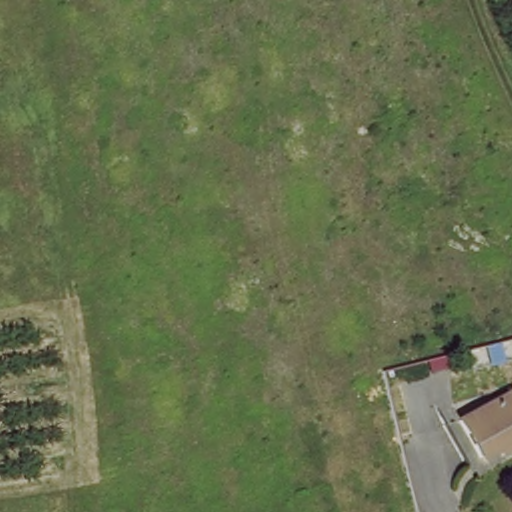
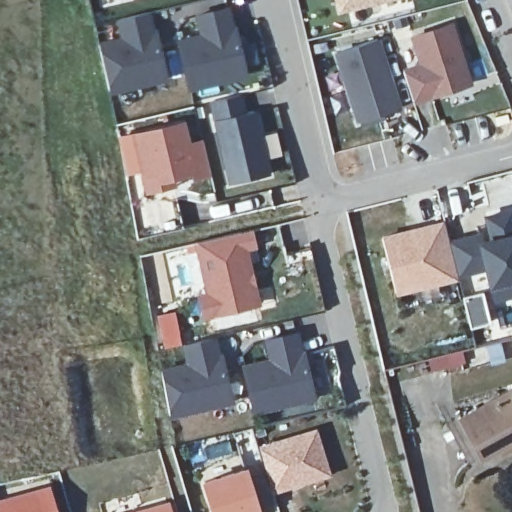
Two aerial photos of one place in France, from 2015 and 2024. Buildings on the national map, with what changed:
new [(344,0),(377,0),(346,8),(344,0)]
new [(201,37),(196,15),(223,9),(239,80),(186,92),(177,43),(201,37)]
new [(120,41),(116,19),(149,11),(164,83),(108,94),(98,46),(120,41)]
new [(418,36),(455,24),(473,82),(417,99),(407,70),(426,64),(418,36)]
new [(403,109),(362,121),(340,53),(381,39),(403,109)]
new [(241,95),(246,115),(253,114),(269,178),(230,188),(213,103),(241,95)]
new [(507,118),(509,124),(497,127),(495,120),(507,118)]
new [(182,123),(187,144),(199,142),(207,180),(146,195),(134,134),(182,123)]
new [(444,226),(448,239),(488,230),(484,210),(512,206),(512,285),(482,291),(477,272),(454,277),(456,288),(394,304),(379,239),(444,226)]
new [(213,294),(201,243),(245,233),(261,304),(218,314),(208,316),(203,297),(213,294)]
new [(159,369),(186,363),(181,339),(218,331),(235,409),(172,424),(159,369)]
new [(269,363),(266,339),(300,332),(313,398),(251,411),(245,369),(269,363)]
unchanged [(490,448),(473,458),(452,419),(501,393),(505,399),(512,397),(512,443),(493,454),(490,448)]
new [(319,432),(331,473),(276,490),(264,449),(319,432)]
new [(261,511),(258,512),(217,512),(208,483),(248,470),(261,511)]
new [(0,504),(52,489),(59,512),(0,512),(0,504)]
new [(169,505),(171,512),(143,512),(169,505)]
new [(261,511),(262,512),(258,512),(261,511)]

